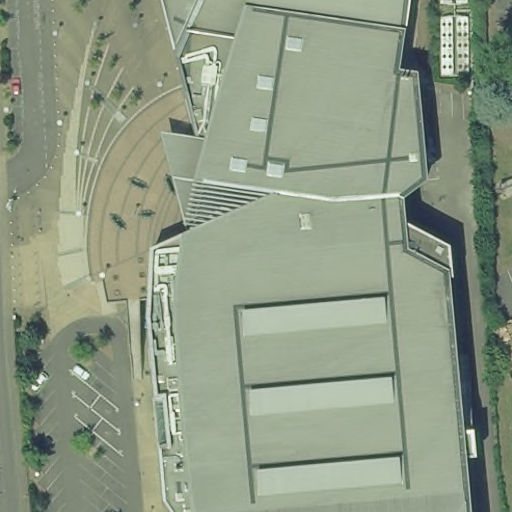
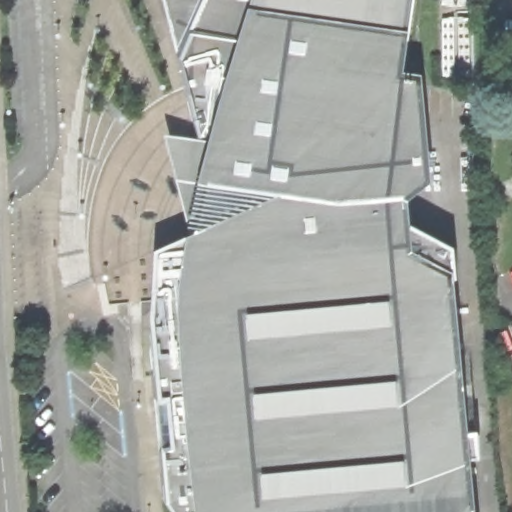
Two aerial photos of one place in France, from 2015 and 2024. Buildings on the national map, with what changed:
unchanged [(404,83),(420,83),(434,183),(411,201),(414,227),(459,253),(461,285),(453,289),(475,512),(182,512),(174,503),(168,451),(179,449),(176,402),(164,402),(159,301),(160,252),(200,233),(173,140),(213,147),(167,0),(415,0),(404,83)]

